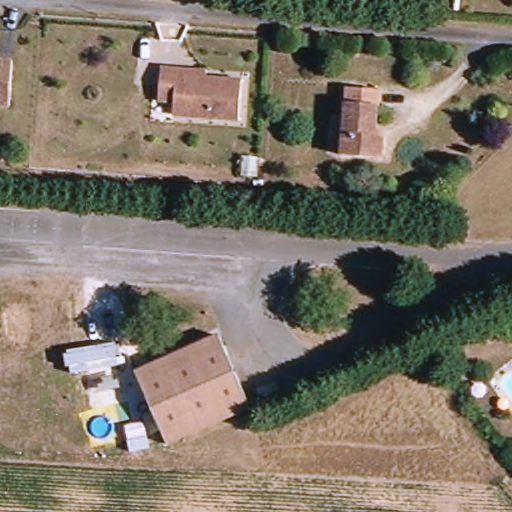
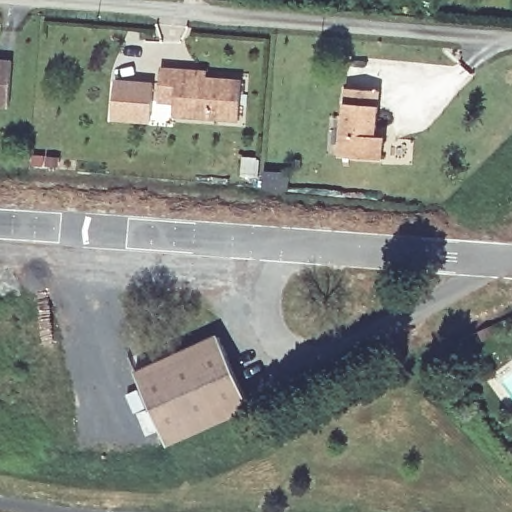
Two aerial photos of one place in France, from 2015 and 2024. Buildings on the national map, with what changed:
unchanged [(17,110),(0,109),(0,64),(1,64),(20,65),(17,110)]
unchanged [(242,120),(176,116),(177,103),(162,102),(165,69),(181,70),(210,71),(210,78),(245,80),(242,120)]
new [(117,81),(155,86),(151,123),(112,119),(117,81)]
unchanged [(384,90),(381,135),(392,135),(390,159),(347,156),(351,89),(384,90)]
unchanged [(175,444),(142,371),(225,334),(249,389),(258,408),(210,428),(175,444)]

